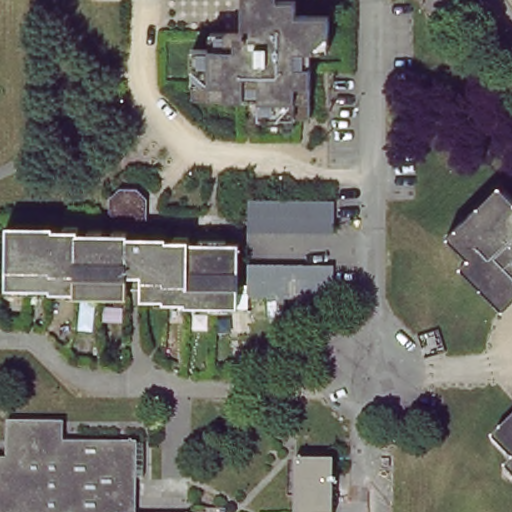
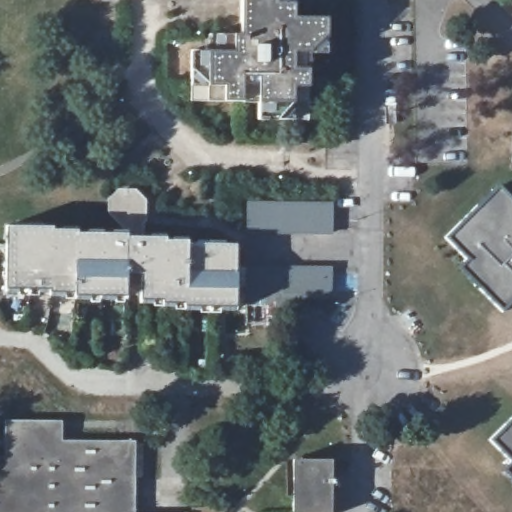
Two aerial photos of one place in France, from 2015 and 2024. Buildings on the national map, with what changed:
unchanged [(296,16),(328,16),(327,49),(308,49),(307,117),(256,117),(257,100),(191,100),(191,49),(210,49),(210,31),(242,31),(242,0),(297,0),(296,16)]
unchanged [(501,305),(456,261),(465,252),(445,231),(497,182),(512,197),(512,295),(501,305)]
unchanged [(235,309),(187,309),(187,306),(162,306),(162,303),(140,303),(140,288),(125,287),(125,298),(74,297),(74,294),(50,294),(50,290),(6,290),(7,225),(51,226),(52,229),(76,229),(77,232),(124,233),(124,225),(104,215),(104,204),(117,193),(132,193),(144,201),(144,238),(165,238),(164,242),(187,242),(187,245),(235,245),(235,309)]
unchanged [(336,232),(252,229),(253,201),(336,203),(336,232)]
unchanged [(335,267),(335,295),(252,293),(253,265),(335,267)]
unchanged [(502,466),(510,458),(492,436),(512,416),(512,476),(502,466)]
unchanged [(2,418),(59,419),(59,437),(133,438),(133,441),(140,441),(140,474),(133,474),(132,510),(188,512),(0,512),(0,453),(1,453),(2,418)]
unchanged [(332,512),(293,512),(294,459),(333,459),(332,512)]

